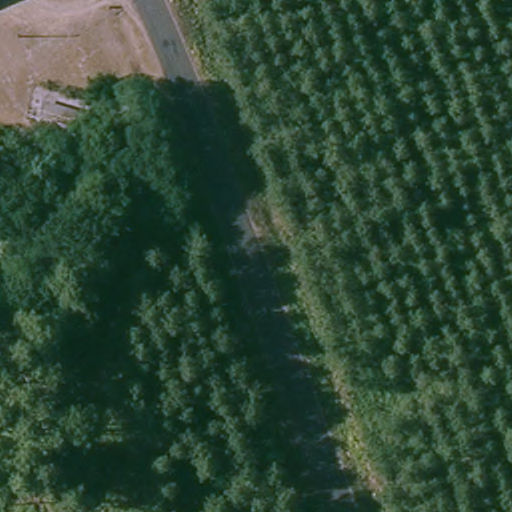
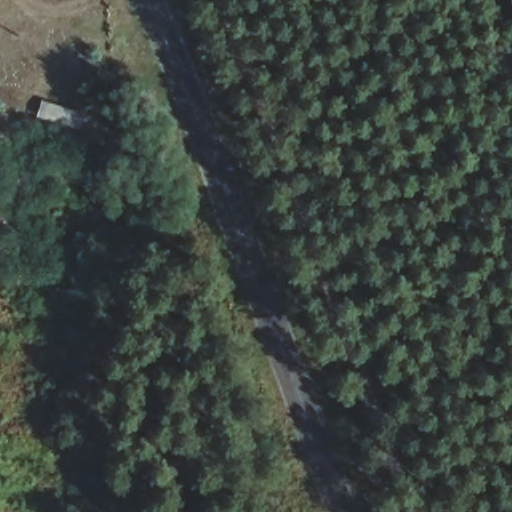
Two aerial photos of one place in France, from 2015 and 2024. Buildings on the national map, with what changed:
unchanged [(85,136),(41,123),(46,103),(90,117),(85,136)]

